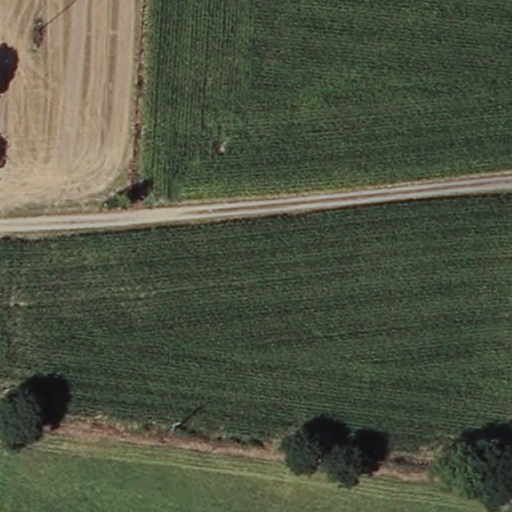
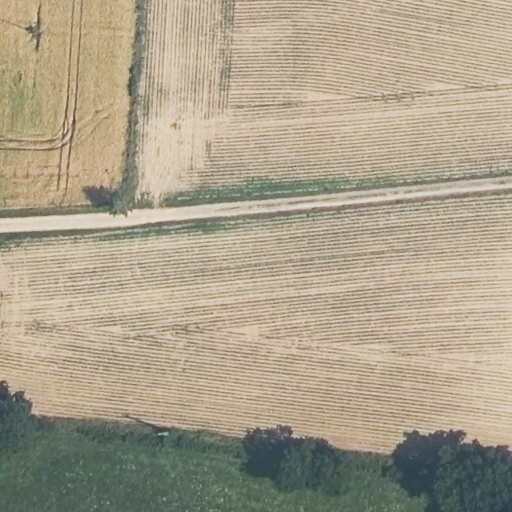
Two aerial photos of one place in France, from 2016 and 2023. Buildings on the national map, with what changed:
[]

